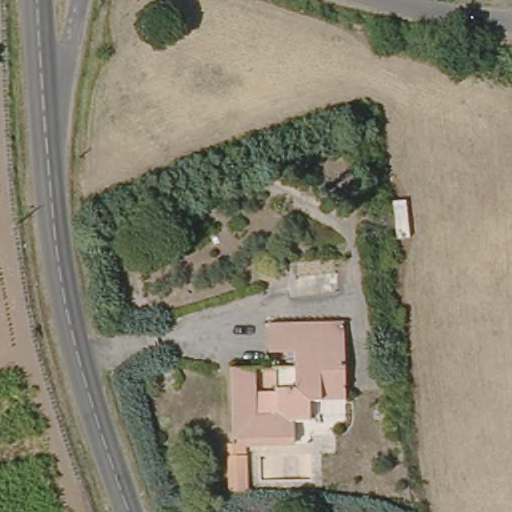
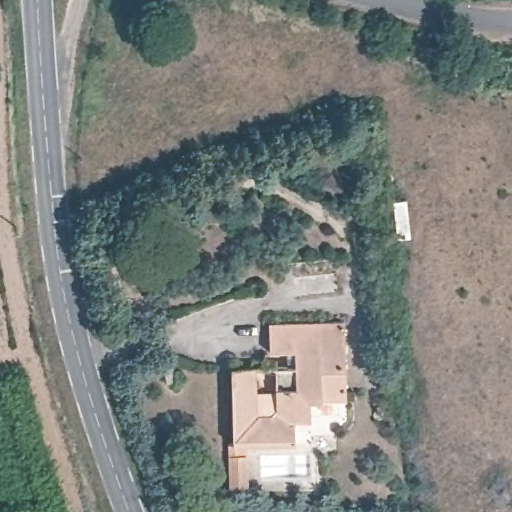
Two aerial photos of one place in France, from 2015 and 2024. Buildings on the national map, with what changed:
unchanged [(319,401),(309,401),(308,424),(288,424),(288,444),(233,442),(235,365),(298,367),(298,352),(272,351),(273,322),(347,325),(346,383),(346,401),(319,401)]

